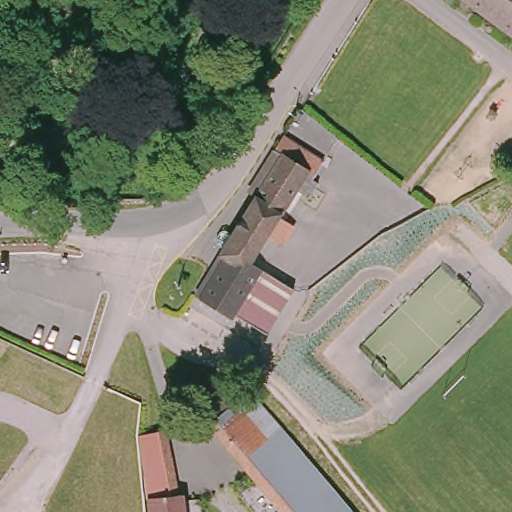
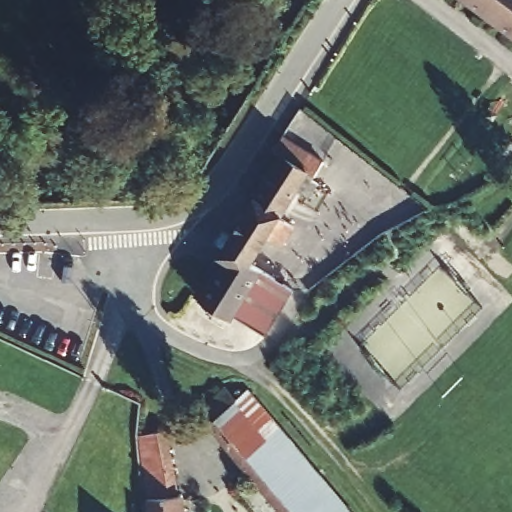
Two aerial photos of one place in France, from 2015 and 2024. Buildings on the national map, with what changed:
unchanged [(440,0),(454,0),(450,7),(440,0)]
unchanged [(512,0),(512,36),(462,0),(512,0)]
unchanged [(512,54),(512,56),(511,55),(512,54)]
unchanged [(264,154),(279,130),(320,156),(327,145),(335,150),(329,161),(327,160),(313,184),(310,182),(306,180),(300,177),(284,204),(299,213),(287,232),(272,223),(272,224),(265,236),(235,222),(253,192),(272,159),(264,154)]
unchanged [(231,246),(223,241),(220,231),(220,227),(224,219),(228,218),(235,222),(265,236),(256,250),(249,265),(227,300),(207,287),(210,281),(231,246)]
unchanged [(249,265),(256,250),(299,276),(279,309),(272,321),(267,318),(239,301),(237,305),(227,300),(249,265)]
unchanged [(253,398),(331,493),(347,512),(280,512),(200,410),(229,386),(240,399),(248,392),(253,398)]
unchanged [(144,501),(140,437),(140,435),(169,433),(180,500),(190,499),(191,512),(144,512),(144,501)]

